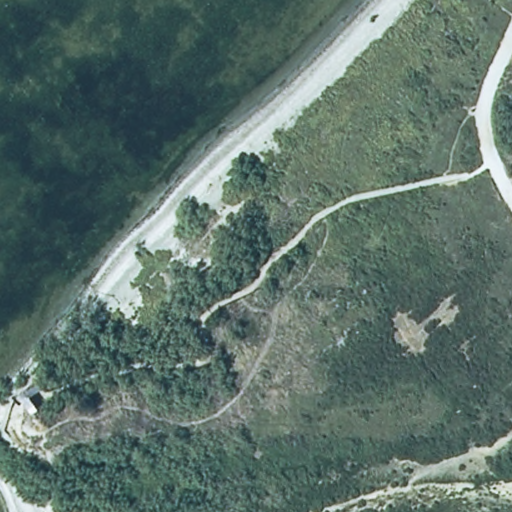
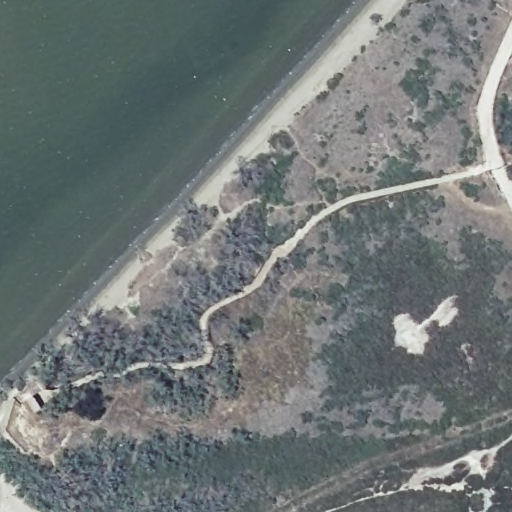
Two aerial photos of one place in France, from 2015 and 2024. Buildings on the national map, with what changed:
unchanged [(50,389),(37,399),(44,408),(35,414),(21,394),(43,378),(50,389)]

